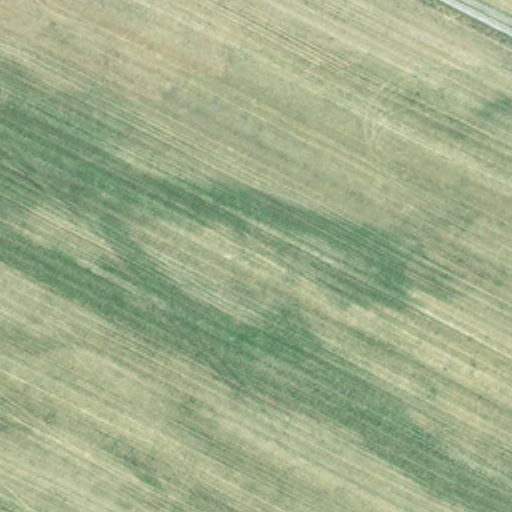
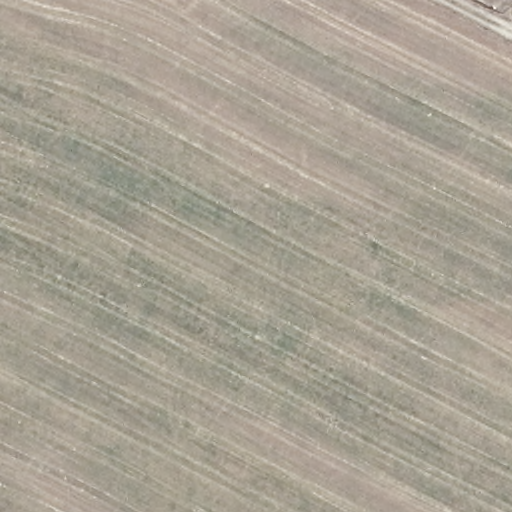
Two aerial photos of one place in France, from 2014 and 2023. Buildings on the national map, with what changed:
[]

